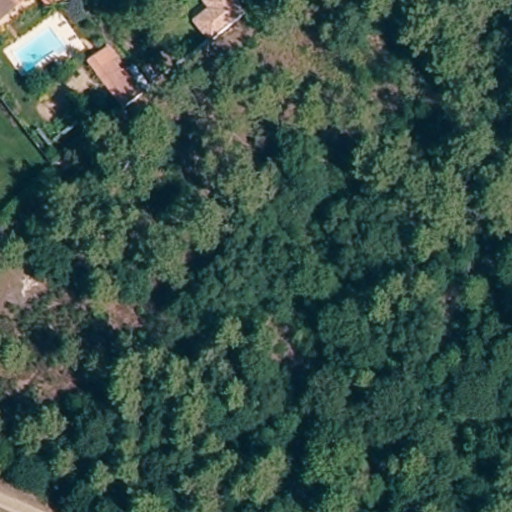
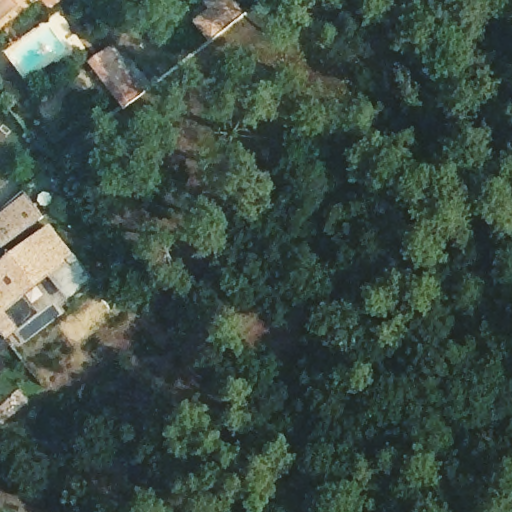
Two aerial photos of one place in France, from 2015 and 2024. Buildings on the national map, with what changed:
unchanged [(0,10),(0,0),(12,0),(0,10)]
unchanged [(44,5),(40,0),(50,0),(44,5)]
unchanged [(208,3),(206,0),(235,0),(240,7),(205,33),(191,17),(208,3)]
unchanged [(104,39),(137,84),(120,97),(86,52),(104,39)]
new [(40,220),(0,251),(0,211),(19,194),(40,220)]
new [(88,282),(66,299),(48,276),(16,301),(29,317),(0,340),(0,271),(49,232),(88,282)]
new [(0,371),(0,366),(2,369),(0,371)]

